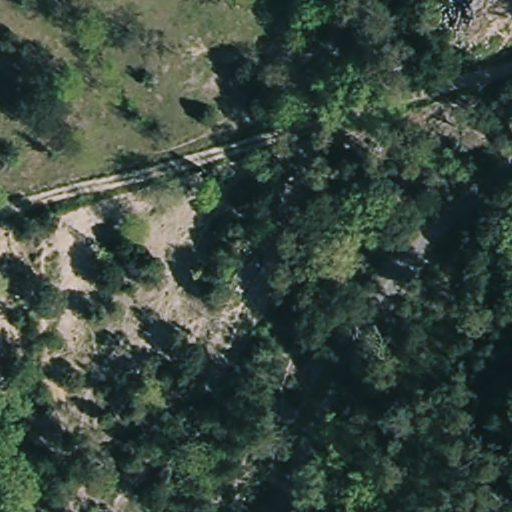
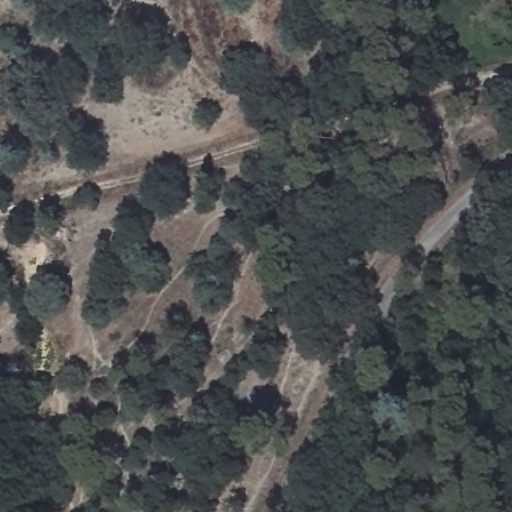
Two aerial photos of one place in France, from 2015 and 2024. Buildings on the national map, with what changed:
[]

